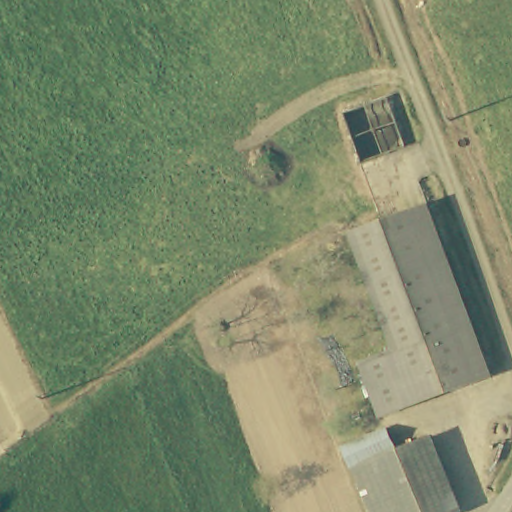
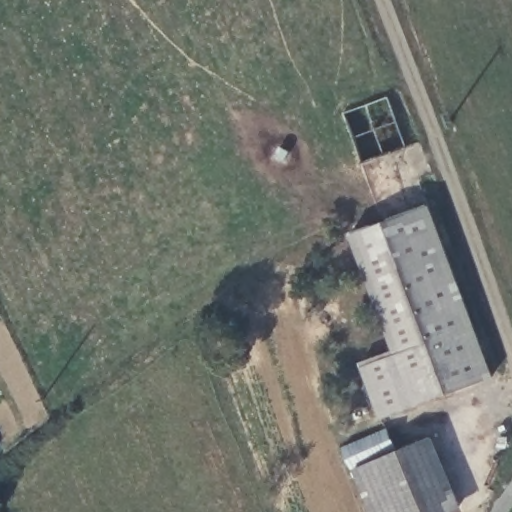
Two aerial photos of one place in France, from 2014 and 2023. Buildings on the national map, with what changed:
unchanged [(330,110),(374,95),(392,144),(348,160),(330,110)]
unchanged [(353,231),(429,202),(491,373),(456,385),(435,332),(396,346),(353,231)]
unchanged [(363,358),(396,346),(435,332),(456,385),(384,411),(363,358)]
unchanged [(387,428),(397,450),(354,467),(343,447),(387,428)]
unchanged [(397,450),(427,440),(453,512),(373,512),(354,467),(397,450)]

